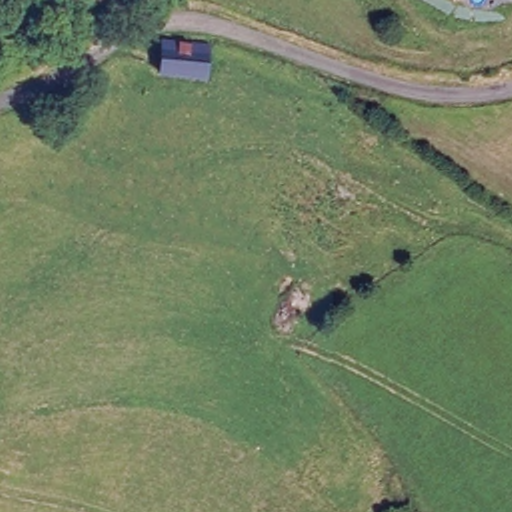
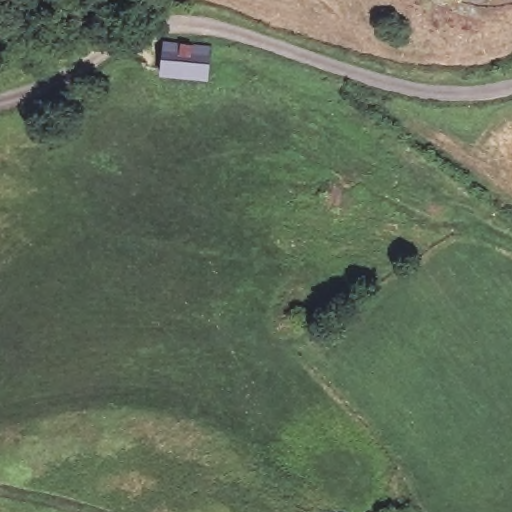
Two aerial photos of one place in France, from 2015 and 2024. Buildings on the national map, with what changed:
unchanged [(209,43),(205,75),(158,69),(162,38),(209,43)]

